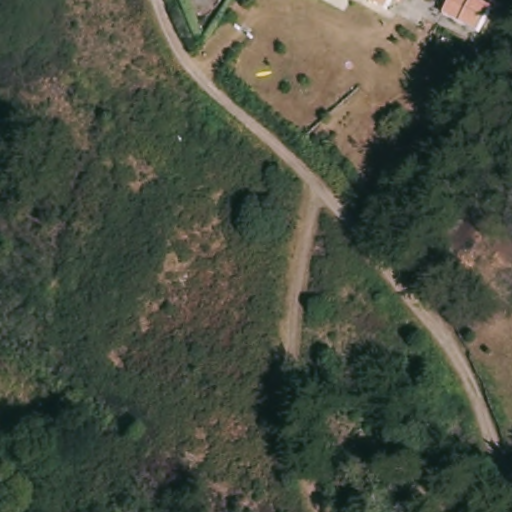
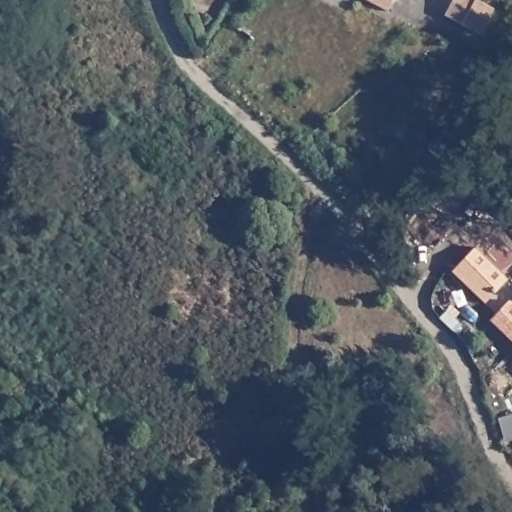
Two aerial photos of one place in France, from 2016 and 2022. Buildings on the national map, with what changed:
unchanged [(367,0),(392,0),(387,10),(367,0)]
unchanged [(451,0),(481,0),(493,6),(481,29),(446,10),(451,0)]
new [(485,305),(452,272),(475,249),(508,280),(485,305)]
new [(509,305),(512,307),(512,342),(492,321),(509,305)]

